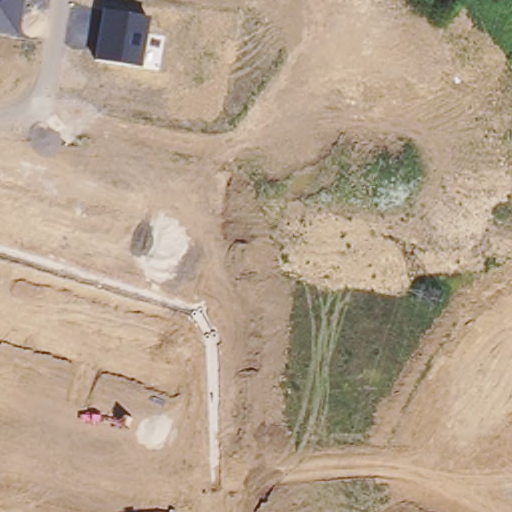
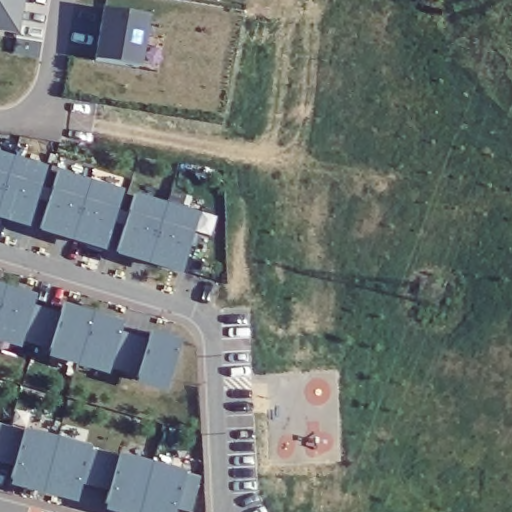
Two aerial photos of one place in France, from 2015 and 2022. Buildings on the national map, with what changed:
unchanged [(19,34),(0,31),(0,0),(25,0),(19,34)]
unchanged [(148,15),(140,70),(90,61),(97,10),(148,15)]
new [(43,169),(38,187),(50,191),(55,173),(120,191),(114,211),(127,216),(132,196),(196,215),(179,276),(114,257),(122,229),(110,225),(102,253),(37,234),(45,208),(33,204),(25,230),(0,222),(0,156),(43,169)]
new [(34,296),(31,306),(59,314),(61,305),(122,322),(118,333),(148,341),(149,332),(180,342),(163,394),(134,385),(137,376),(108,368),(106,375),(48,358),(49,351),(20,343),(17,350),(0,345),(0,287),(34,296)]
new [(88,447),(118,455),(182,473),(198,478),(190,512),(174,510),(173,512),(103,512),(108,493),(79,485),(73,505),(8,488),(13,467),(0,464),(0,426),(88,447)]

